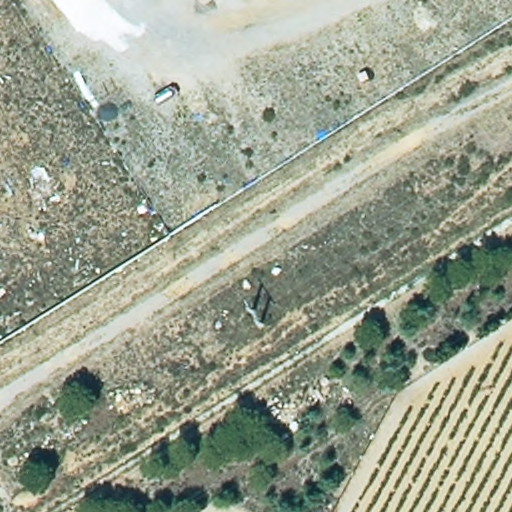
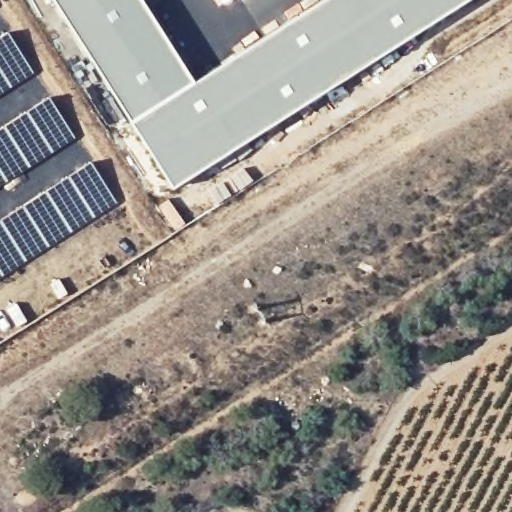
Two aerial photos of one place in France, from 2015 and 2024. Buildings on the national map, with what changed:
new [(128,124),(322,0),(468,0),(171,189),(128,124)]
new [(0,37),(6,33),(33,73),(0,94),(0,37)]
new [(0,128),(48,98),(74,139),(0,186),(0,128)]
new [(0,220),(89,162),(115,203),(0,278),(0,220)]

